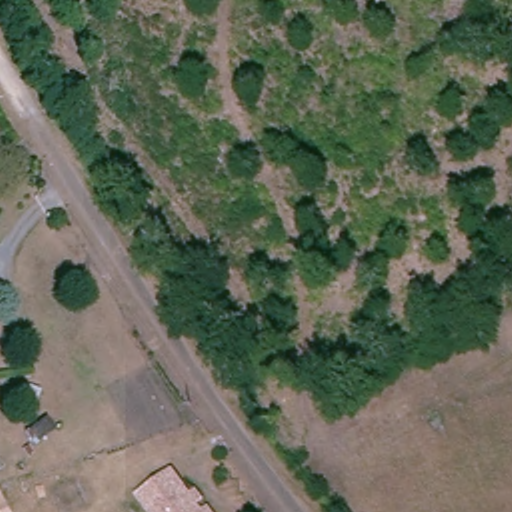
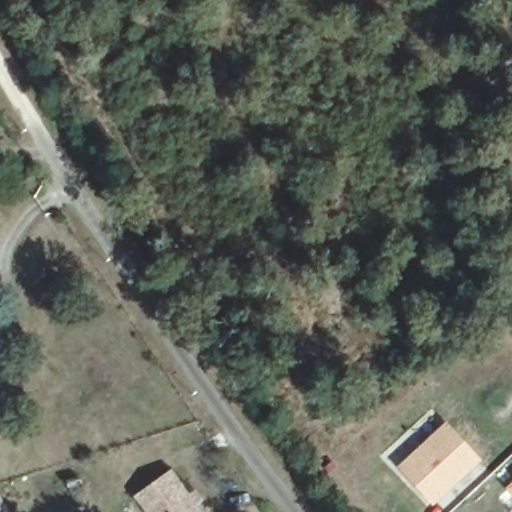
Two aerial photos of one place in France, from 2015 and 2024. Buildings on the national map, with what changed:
new [(431,505),(397,467),(445,422),(481,461),(431,505)]
unchanged [(172,467),(190,490),(197,485),(216,512),(146,512),(134,495),(172,467)]
new [(512,483),(512,496),(505,489),(512,483)]
unchanged [(9,512),(0,512),(0,496),(9,512)]

